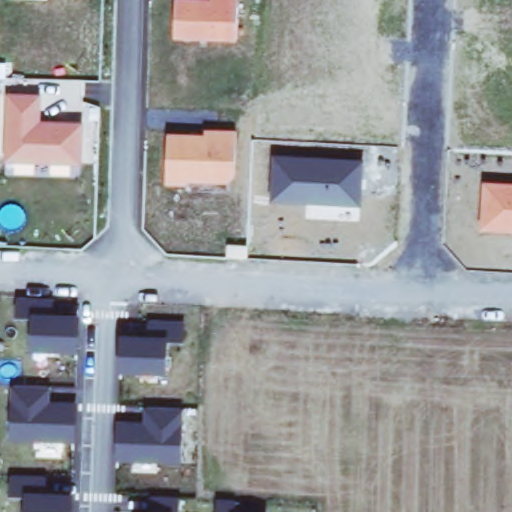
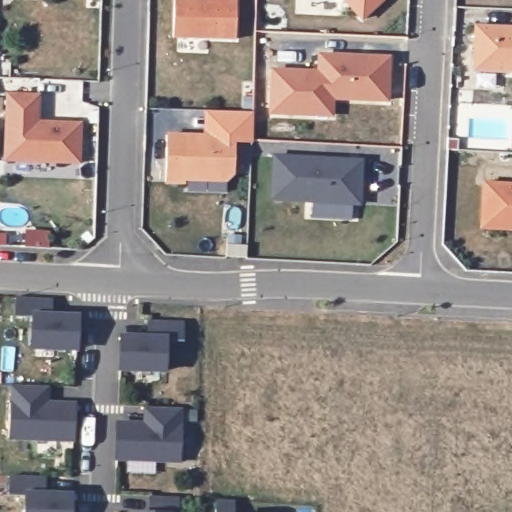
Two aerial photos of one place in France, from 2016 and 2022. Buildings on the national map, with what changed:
unchanged [(176,0),(212,1),(212,0),(239,0),(239,3),(237,40),(175,38),(176,0)]
new [(346,0),(378,0),(362,16),(346,0)]
new [(476,29),(512,30),(512,74),(475,73),(476,29)]
new [(315,114),(272,112),(274,70),(320,73),(321,55),(390,58),(387,100),(333,98),(332,115),(315,114)]
unchanged [(40,95),(39,115),(31,114),(31,121),(82,124),(80,164),(6,160),(7,94),(40,95)]
unchanged [(235,174),(229,179),(186,177),(185,182),(166,182),(167,135),(205,136),(206,131),(218,132),(236,133),(235,174)]
unchanged [(272,156),(362,162),(359,208),(270,204),(272,156)]
unchanged [(512,185),(512,234),(479,233),(482,184),(512,185)]
new [(229,258),(230,245),(250,246),(249,258),(229,258)]
unchanged [(51,299),(51,318),(62,318),(62,323),(77,324),(76,351),(32,349),(33,318),(17,317),(18,298),(51,299)]
unchanged [(182,340),(166,340),(165,372),(120,369),(121,343),(137,343),(137,338),(149,339),(150,321),(182,322),(182,340)]
unchanged [(11,403),(14,403),(15,386),(47,387),(47,404),(63,405),(62,410),(75,411),(74,440),(10,438),(11,403)]
unchanged [(117,429),(130,429),(131,424),(147,425),(147,408),(180,409),(180,426),(182,426),(181,461),(117,459),(117,429)]
unchanged [(45,478),(45,495),(56,496),(56,501),(72,501),(72,512),(26,512),(27,496),(11,495),(12,477),(45,478)]
unchanged [(152,497),(180,498),(180,512),(152,512),(152,497)]
unchanged [(235,502),(235,512),(216,512),(217,501),(235,502)]

